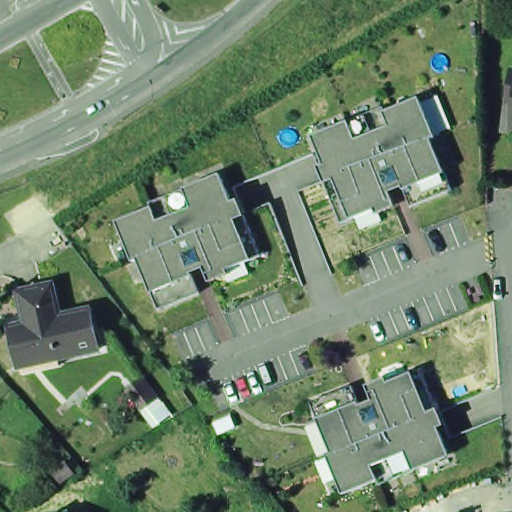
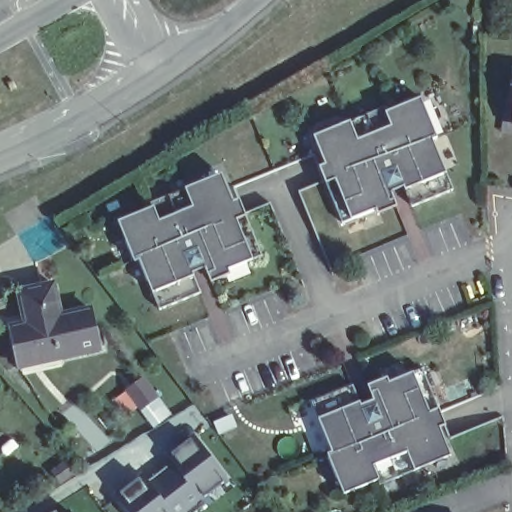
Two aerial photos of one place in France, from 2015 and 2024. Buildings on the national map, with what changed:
unchanged [(352,122),(385,107),(389,111),(424,97),(438,139),(435,142),(454,192),(415,208),(401,167),(385,173),(397,208),(378,216),(376,211),(354,219),(337,179),(328,183),(323,170),(329,166),(317,134),(352,122)]
unchanged [(510,102),(512,102),(512,138),(505,137),(510,102)]
unchanged [(188,195),(187,190),(222,175),(232,202),(240,200),(246,217),(262,259),(251,264),(250,262),(228,271),(230,276),(212,284),(207,271),(195,277),(202,296),(162,312),(142,261),(137,263),(120,222),(188,195)]
unchanged [(25,293),(60,287),(65,319),(31,326),(25,293)]
unchanged [(97,312),(107,352),(25,368),(17,329),(31,326),(65,319),(97,312)]
unchanged [(336,460),(315,402),(353,388),(361,405),(373,401),(370,385),(388,377),(390,382),(415,372),(430,413),(439,408),(447,428),(442,431),(452,457),(380,485),(378,480),(344,492),(332,461),(336,460)]
new [(203,497),(206,501),(192,512),(160,469),(172,460),(167,453),(176,447),(195,433),(197,435),(226,473),(228,477),(203,497)]
new [(118,496),(116,493),(135,479),(143,472),(148,478),(160,469),(192,512),(131,512),(118,496)]
new [(56,507),(59,512),(49,512),(56,507)]
new [(70,508),(73,512),(64,512),(70,508)]

